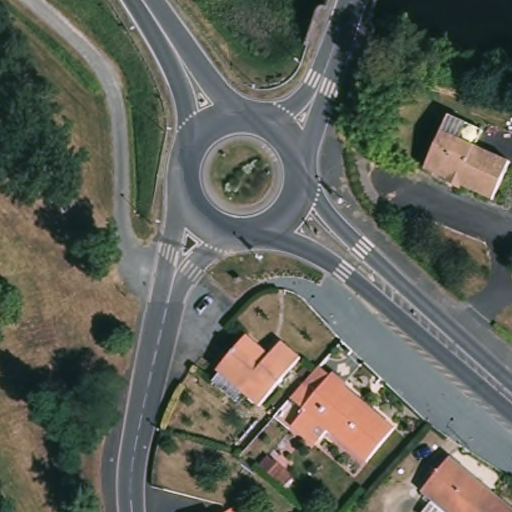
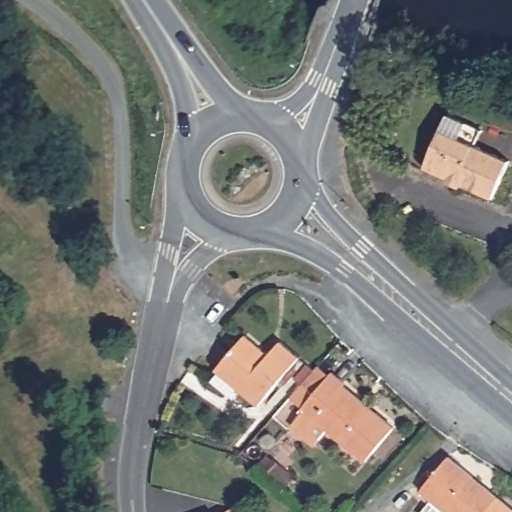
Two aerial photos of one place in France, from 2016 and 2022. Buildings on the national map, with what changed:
unchanged [(486,132),(479,146),(512,163),(494,201),(426,168),(452,115),(486,132)]
unchanged [(249,334),(272,355),(284,341),(303,358),(260,406),(244,390),(235,398),(214,380),(222,371),(219,368),(249,334)]
unchanged [(394,427),(367,460),(330,430),(318,445),(298,430),(297,422),(307,411),(305,409),(315,395),(304,386),(317,371),(320,368),(330,376),(331,375),(394,427)]
unchanged [(451,510),(450,512),(426,512),(437,499),(428,490),(454,458),(503,498),(491,512),(453,512),(451,510)]
unchanged [(512,506),(512,512),(491,512),(503,498),(512,506)]
unchanged [(235,510),(237,512),(231,512),(235,510)]

